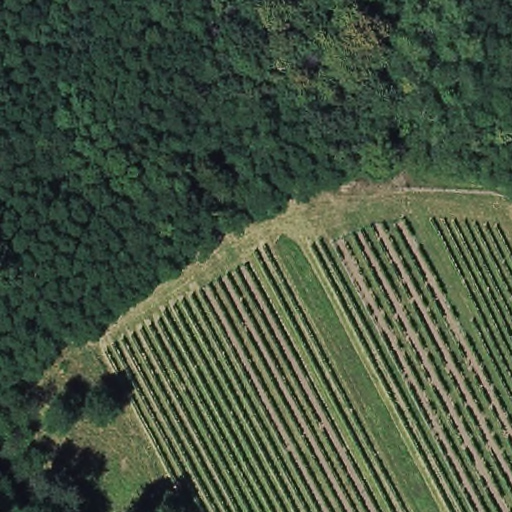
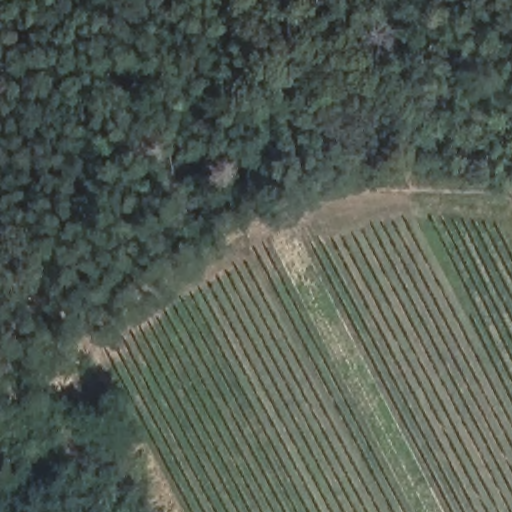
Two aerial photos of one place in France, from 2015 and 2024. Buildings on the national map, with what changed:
[]

